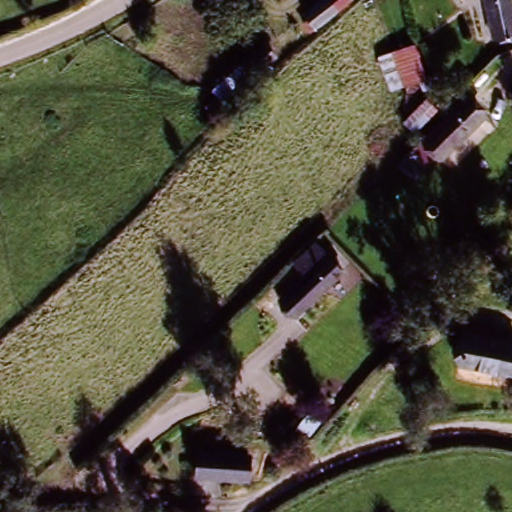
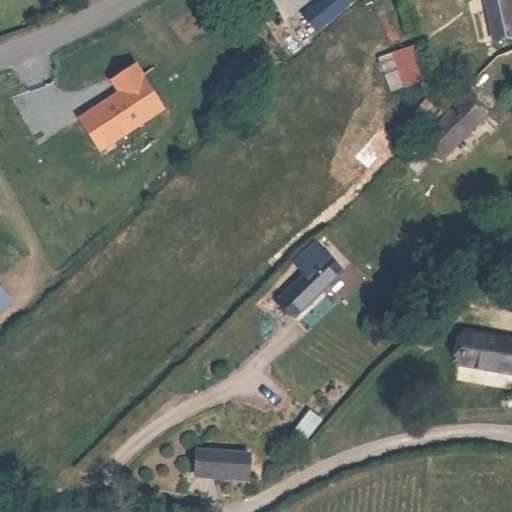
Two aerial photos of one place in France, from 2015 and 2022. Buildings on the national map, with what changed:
unchanged [(344,0),(350,9),(328,24),(320,11),(337,0),(344,0)]
unchanged [(497,51),(485,0),(510,0),(512,10),(512,48),(497,51)]
unchanged [(426,86),(390,99),(375,64),(413,54),(426,86)]
new [(80,114),(120,86),(111,74),(134,58),(163,99),(100,144),(80,114)]
unchanged [(241,78),(252,91),(230,109),(218,96),(241,78)]
unchanged [(422,149),(443,127),(462,106),(480,125),(460,145),(439,165),(422,149)]
unchanged [(298,327),(279,310),(302,284),(294,277),(313,257),(321,264),(340,279),(298,327)]
unchanged [(458,338),(512,342),(512,359),(510,376),(455,371),(458,338)]
unchanged [(335,414),(300,446),(288,441),(322,398),(335,414)]
unchanged [(250,480),(201,482),(198,482),(197,460),(248,456),(250,480)]

